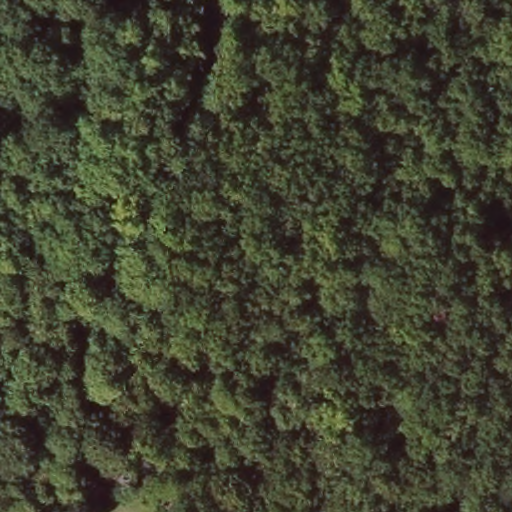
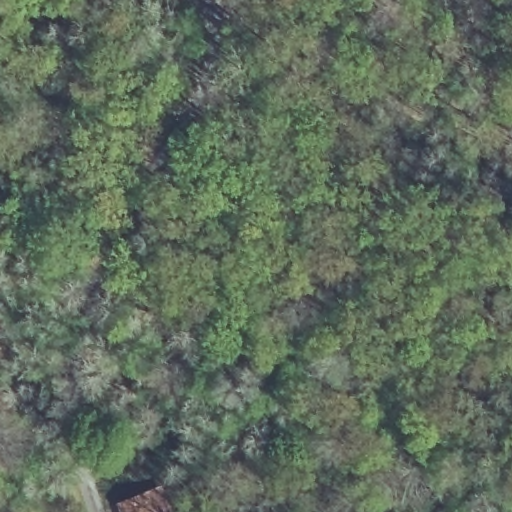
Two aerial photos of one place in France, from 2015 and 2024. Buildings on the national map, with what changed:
new [(181,512),(120,512),(115,501),(168,480),(181,512)]

